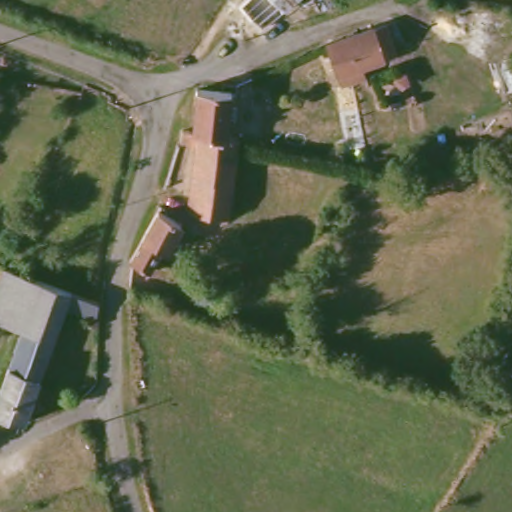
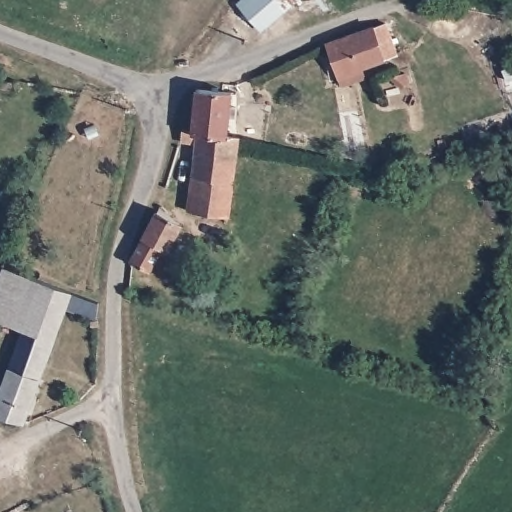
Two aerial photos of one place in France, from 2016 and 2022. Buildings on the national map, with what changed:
unchanged [(259,30),(236,6),(242,0),(292,0),(259,30)]
unchanged [(381,22),(389,54),(336,70),(336,79),(329,80),(322,42),(381,22)]
unchanged [(191,87),(222,88),(220,134),(187,131),(191,87)]
unchanged [(228,135),(219,212),(180,209),(186,142),(174,139),(176,129),(187,131),(220,134),(228,135)]
unchanged [(173,214),(159,242),(153,239),(138,265),(121,259),(121,250),(151,201),(173,214)]
unchanged [(18,330),(0,323),(0,265),(37,279),(18,330)]
unchanged [(93,313),(93,317),(60,306),(19,420),(0,413),(0,381),(18,330),(37,279),(66,289),(95,299),(93,313)]

